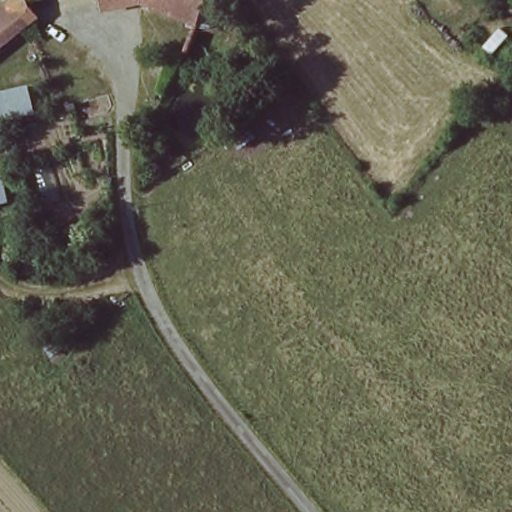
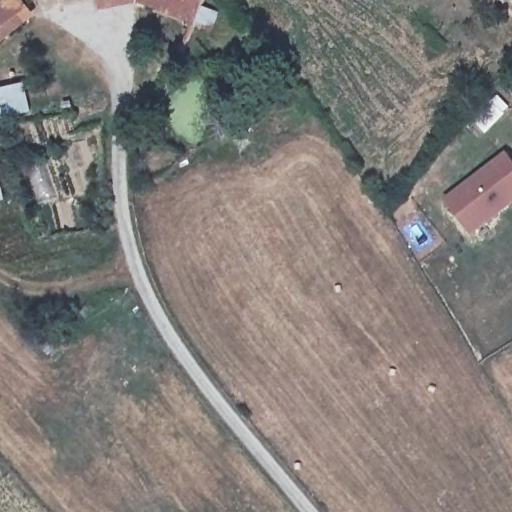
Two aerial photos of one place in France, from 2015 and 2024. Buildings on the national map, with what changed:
unchanged [(0,42),(0,0),(26,0),(33,18),(0,42)]
unchanged [(179,17),(143,0),(104,8),(103,0),(207,0),(197,22),(179,17)]
unchanged [(53,110),(0,118),(0,85),(45,79),(53,110)]
new [(442,199),(505,152),(512,162),(512,205),(470,235),(442,199)]

